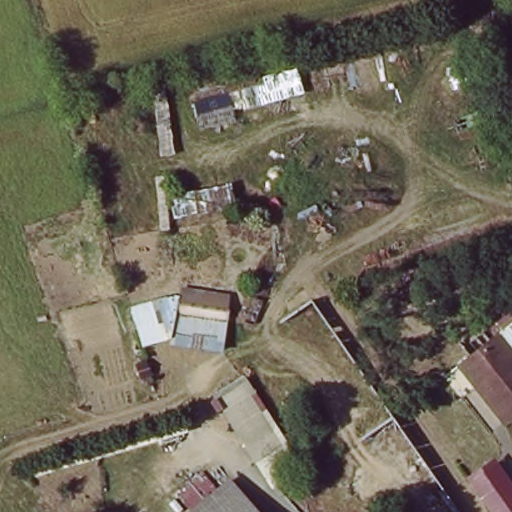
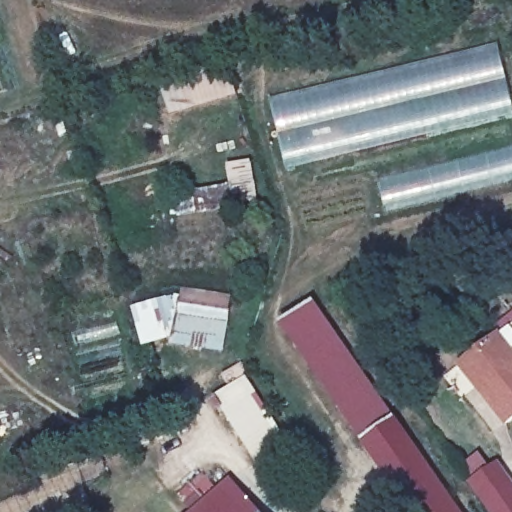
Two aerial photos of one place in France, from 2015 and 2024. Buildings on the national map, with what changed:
new [(512,96),(512,116),(287,171),(271,100),(500,45),(512,96)]
new [(164,92),(162,85),(227,62),(239,96),(172,116),(177,156),(163,158),(155,94),(164,92)]
demolished [(236,120),(229,93),(275,81),(273,71),(304,65),(308,99),(236,120)]
new [(388,216),(380,182),(512,147),(512,185),(388,216)]
new [(230,185),(227,165),(252,160),(258,205),(174,219),(173,196),(230,185)]
unchanged [(226,354),(170,345),(182,288),(236,297),(226,354)]
new [(283,323),(315,301),(391,409),(359,430),(283,323)]
unchanged [(502,426),(474,386),(459,365),(470,357),(500,336),(512,353),(512,419),(502,426)]
unchanged [(262,466),(216,400),(248,377),(291,448),(262,466)]
new [(391,409),(458,512),(412,512),(359,430),(391,409)]
new [(472,479),(498,462),(508,476),(512,483),(512,512),(494,512),(482,493),(472,479)]
unchanged [(235,486),(255,512),(204,512),(235,486)]

